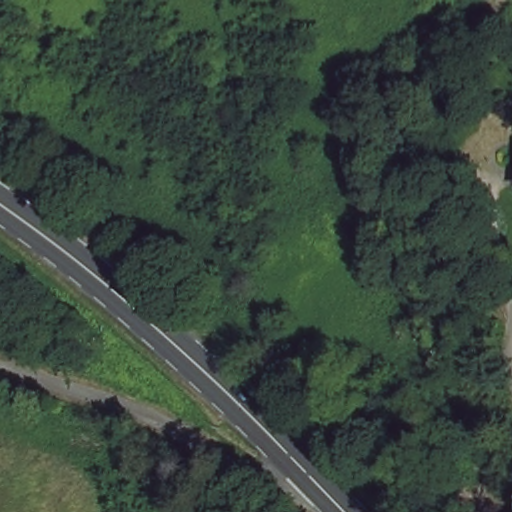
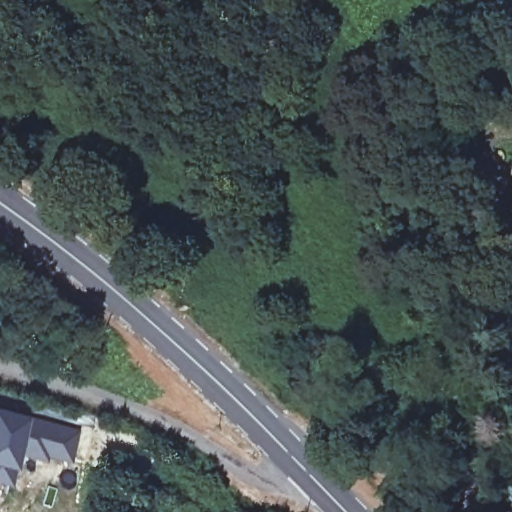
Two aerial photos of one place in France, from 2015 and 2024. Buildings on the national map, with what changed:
new [(82,428),(73,463),(21,454),(12,485),(0,483),(0,407),(82,428)]
demolished [(216,431),(217,430),(257,455),(256,456),(216,431)]

